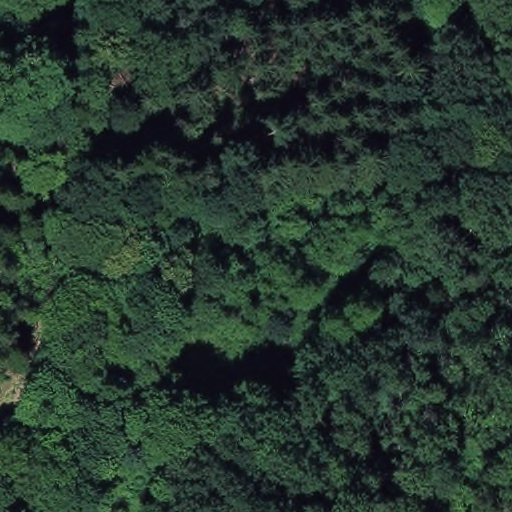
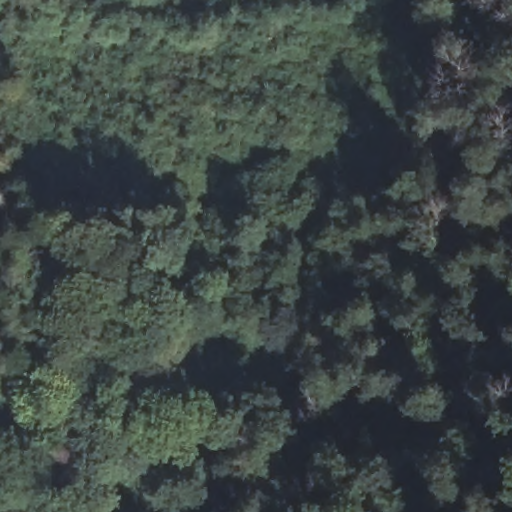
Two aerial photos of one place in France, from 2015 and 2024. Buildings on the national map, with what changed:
unchanged [(85,507),(84,512),(68,512),(68,506),(85,507)]

